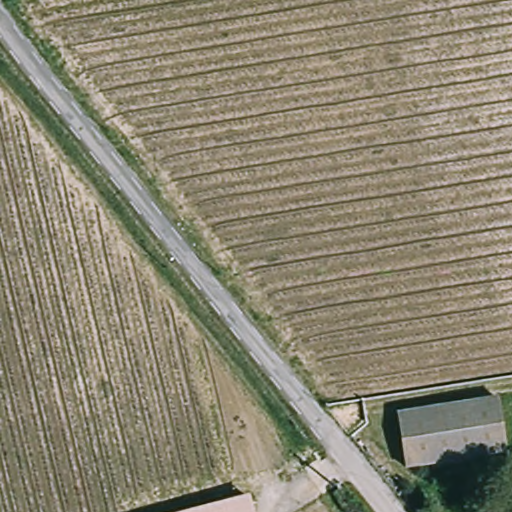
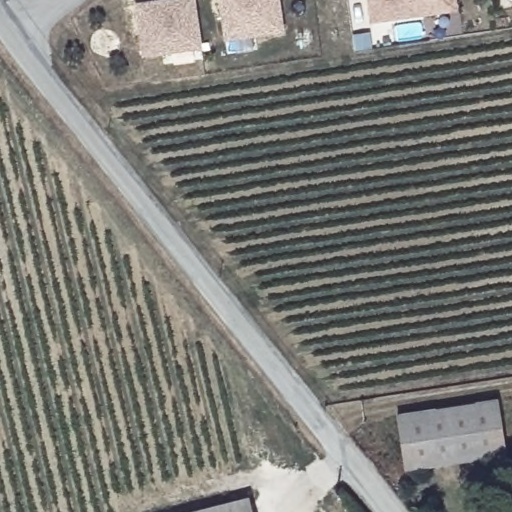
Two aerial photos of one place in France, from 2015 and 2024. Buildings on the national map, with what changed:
new [(197,0),(205,50),(147,59),(139,7),(187,0),(197,0)]
new [(229,42),(223,0),(282,0),(287,34),(229,42)]
new [(372,20),(369,0),(457,0),(458,7),(439,10),(372,20)]
unchanged [(503,451),(409,463),(401,414),(495,401),(503,451)]
unchanged [(246,498),(250,512),(186,512),(246,498)]

